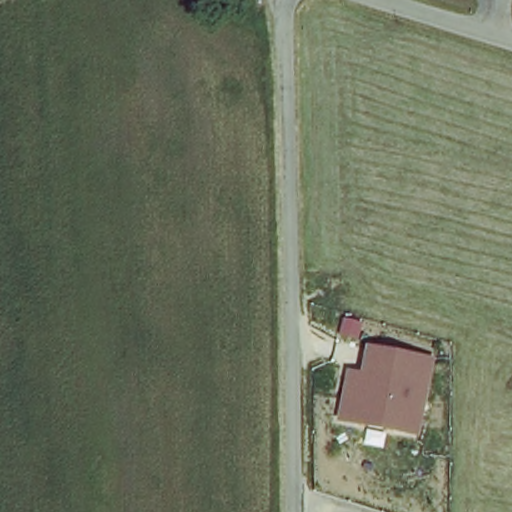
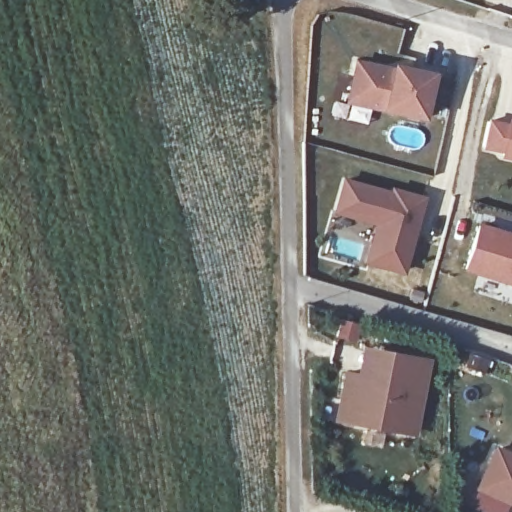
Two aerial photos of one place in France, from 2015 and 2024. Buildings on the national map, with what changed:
new [(361,55),(397,63),(398,59),(435,67),(425,110),(352,92),(361,55)]
new [(506,122),(507,118),(512,119),(512,160),(501,157),(502,152),(483,149),(488,118),(506,122)]
new [(393,189),(395,185),(425,193),(419,213),(415,226),(404,266),(368,256),(380,217),(337,205),(345,175),(393,189)]
new [(512,233),(512,286),(463,271),(477,222),(512,233)]
unchanged [(415,437),(332,422),(341,373),(356,375),(361,350),(430,360),(415,437)]
unchanged [(512,454),(512,500),(510,500),(479,486),(497,447),(512,454)]

